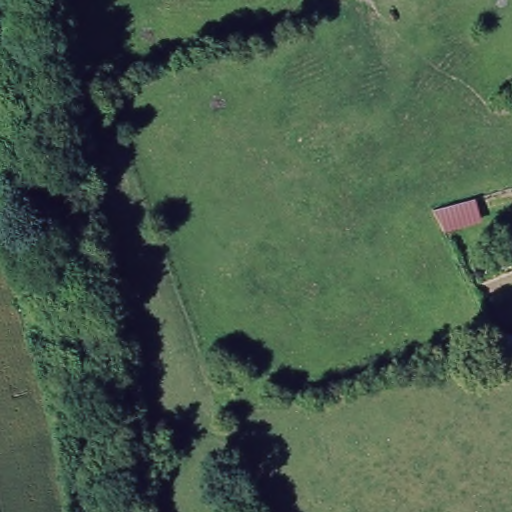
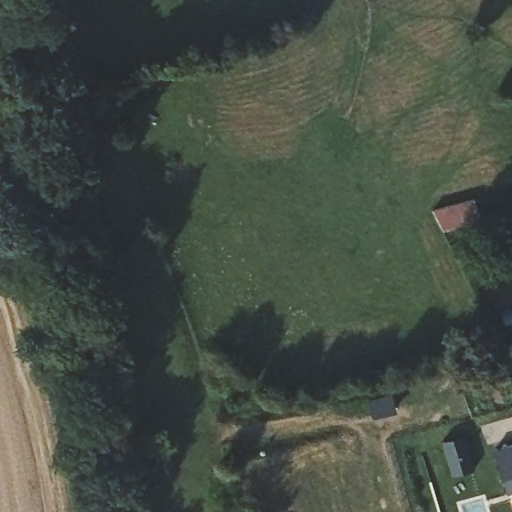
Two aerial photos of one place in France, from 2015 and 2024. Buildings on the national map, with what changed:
unchanged [(483,222),(444,233),(434,212),(479,200),(483,222)]
new [(507,493),(495,449),(512,444),(512,491),(507,493)]

